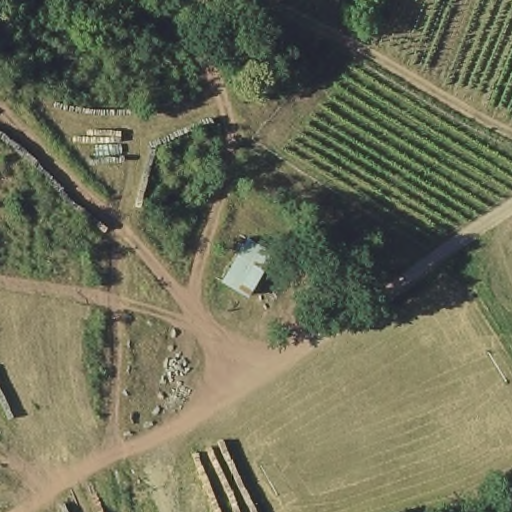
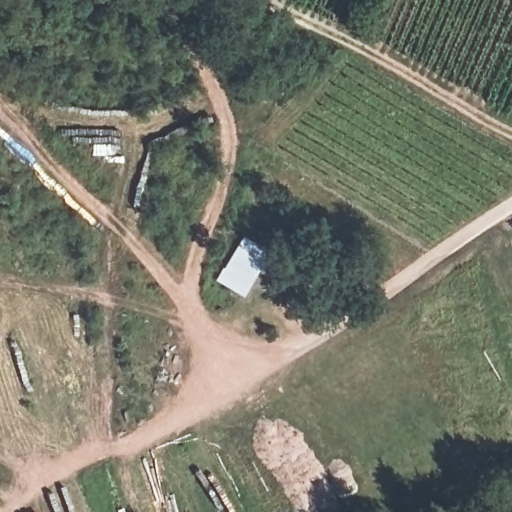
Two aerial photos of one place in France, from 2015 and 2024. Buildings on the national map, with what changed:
unchanged [(246,237),(274,252),(246,295),(222,277),(246,237)]

